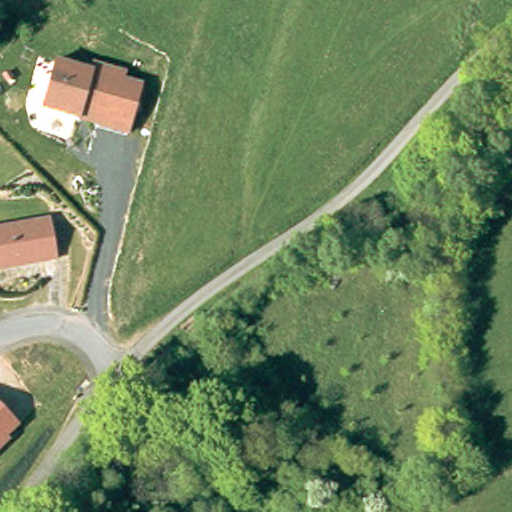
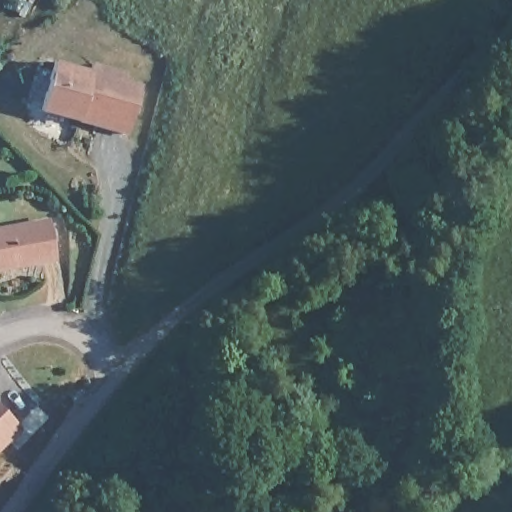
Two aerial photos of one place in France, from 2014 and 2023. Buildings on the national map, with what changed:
unchanged [(130,132),(41,110),(54,60),(90,69),(92,63),(127,72),(127,80),(143,84),(130,132)]
unchanged [(57,260),(0,270),(0,226),(51,218),(57,260)]
unchanged [(20,426),(8,437),(11,440),(0,451),(0,406),(20,426)]

